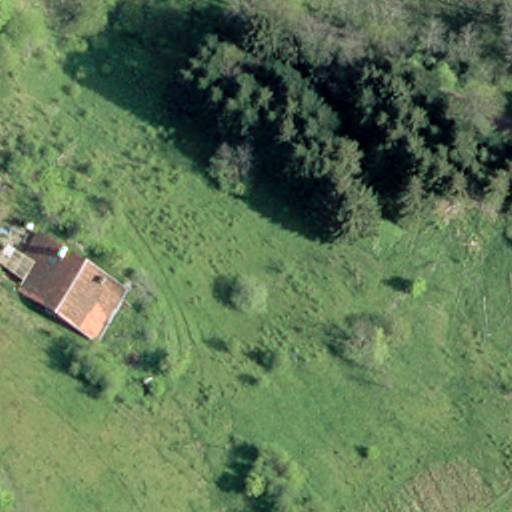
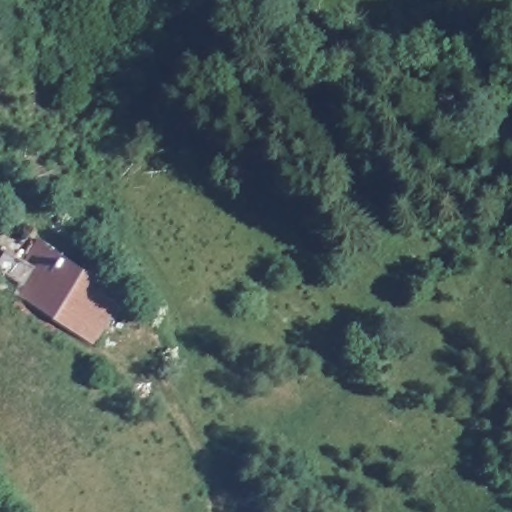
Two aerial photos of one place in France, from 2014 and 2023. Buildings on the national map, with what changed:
unchanged [(90,347),(23,298),(40,271),(30,263),(38,246),(38,244),(122,301),(90,347)]

